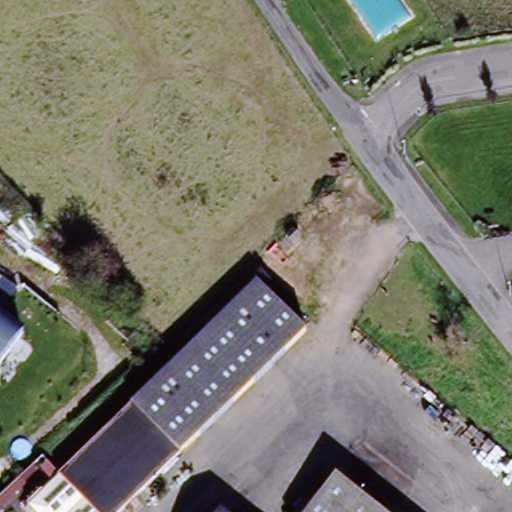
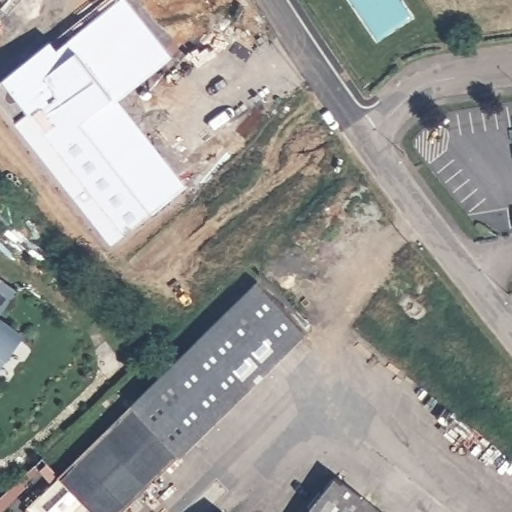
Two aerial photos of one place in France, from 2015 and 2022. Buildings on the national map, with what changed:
new [(118,104),(187,190),(112,249),(0,107),(0,83),(50,44),(55,51),(118,0),(124,0),(175,60),(118,104)]
unchanged [(0,289),(0,281),(4,284),(0,289)]
unchanged [(121,426),(255,284),(305,333),(176,469),(121,426)]
unchanged [(0,362),(0,313),(22,329),(0,362)]
unchanged [(176,469),(133,512),(92,512),(65,485),(121,426),(176,469)]
unchanged [(372,512),(292,512),(322,474),(372,512)]
unchanged [(65,485),(92,512),(38,512),(65,485)]

